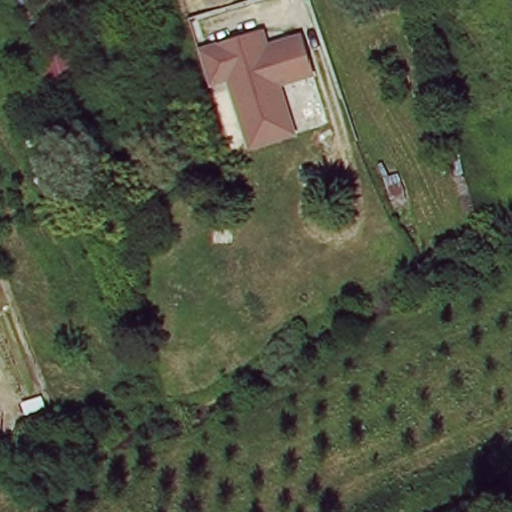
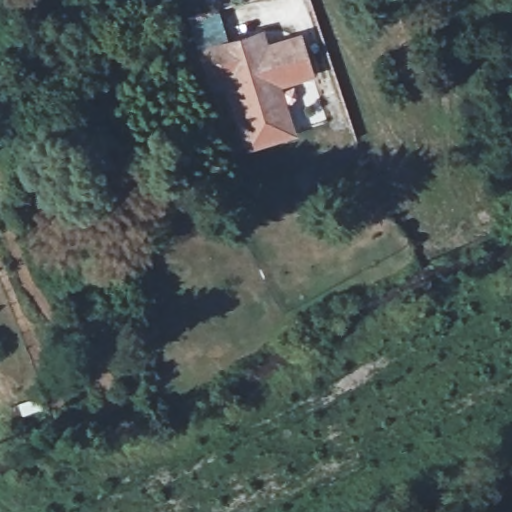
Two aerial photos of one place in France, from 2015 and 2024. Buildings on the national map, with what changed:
unchanged [(282,89),(297,138),(245,154),(224,85),(208,90),(194,51),(198,49),(190,21),(220,12),(228,40),(260,30),(265,49),(298,37),(311,79),(282,89)]
unchanged [(68,51),(80,81),(47,92),(35,61),(68,51)]

